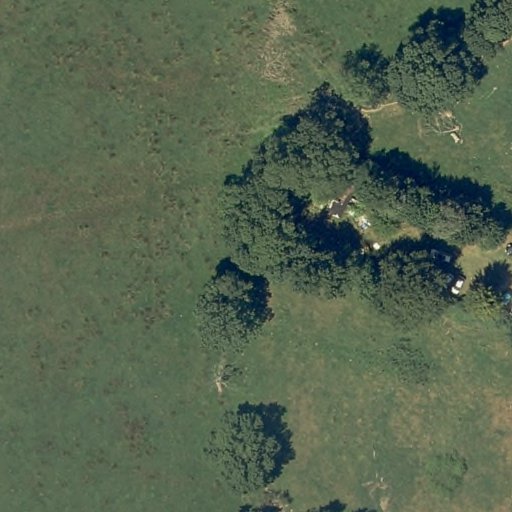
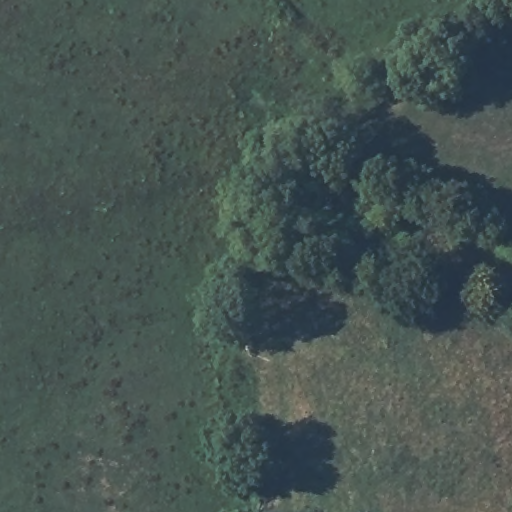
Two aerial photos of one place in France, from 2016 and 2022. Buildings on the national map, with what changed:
unchanged [(335,216),(305,201),(322,160),(356,184),(335,216)]

